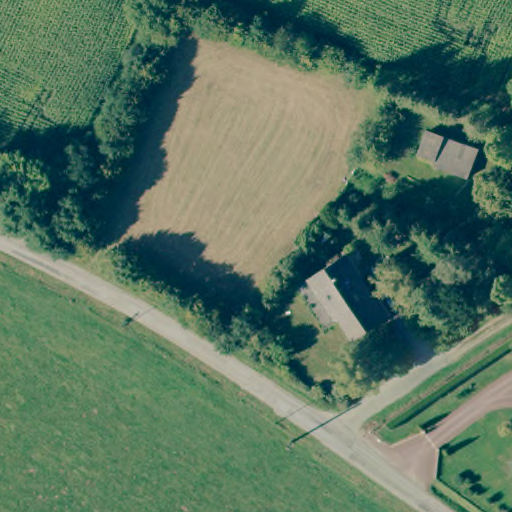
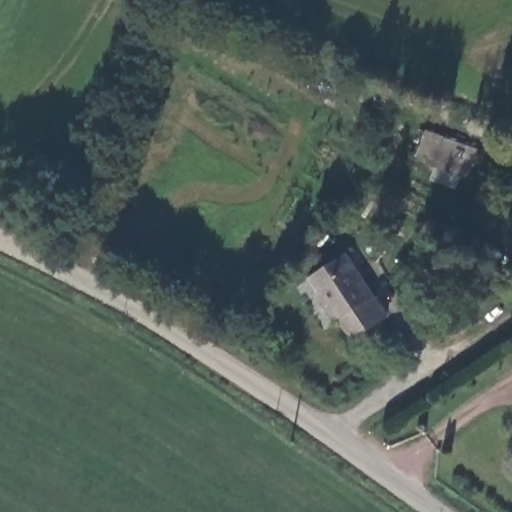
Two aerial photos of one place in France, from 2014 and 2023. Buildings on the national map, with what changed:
unchanged [(457,176),(423,162),(425,158),(410,151),(411,149),(421,127),(469,149),(461,166),(457,176)]
unchanged [(387,321),(350,341),(339,322),(336,323),(310,276),(349,254),(387,321)]

